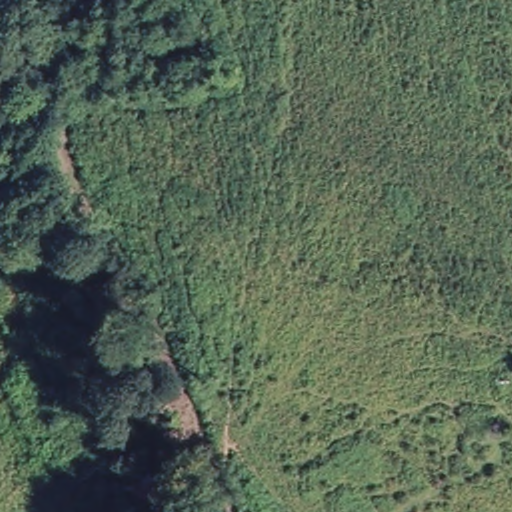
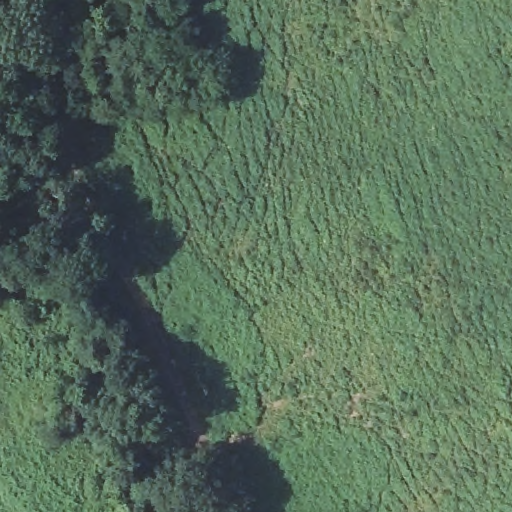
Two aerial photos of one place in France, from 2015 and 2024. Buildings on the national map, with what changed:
unchanged [(106,467),(141,459),(153,512),(118,512),(106,467)]

